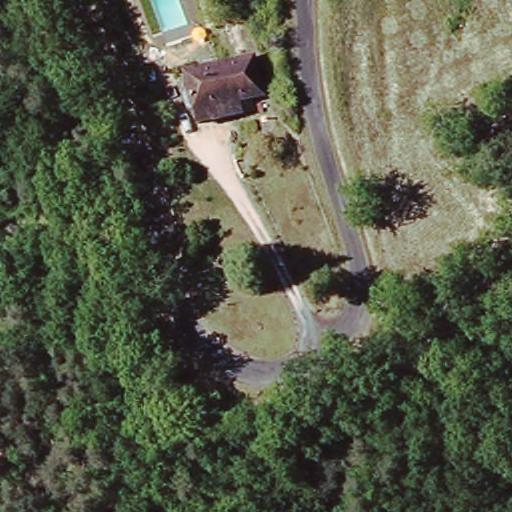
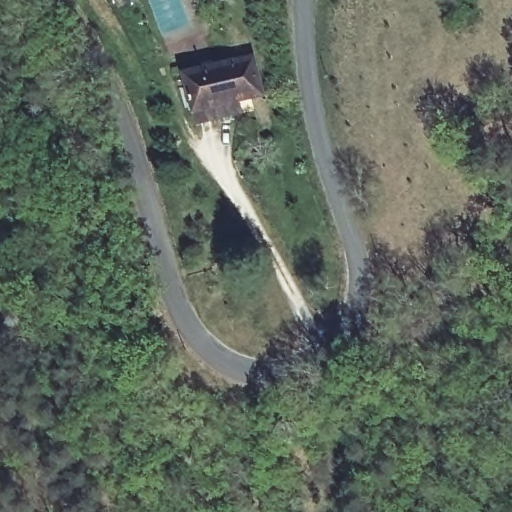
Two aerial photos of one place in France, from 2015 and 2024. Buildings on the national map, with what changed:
unchanged [(253,55),(261,86),(240,91),(246,112),(195,125),(182,74),(253,55)]

